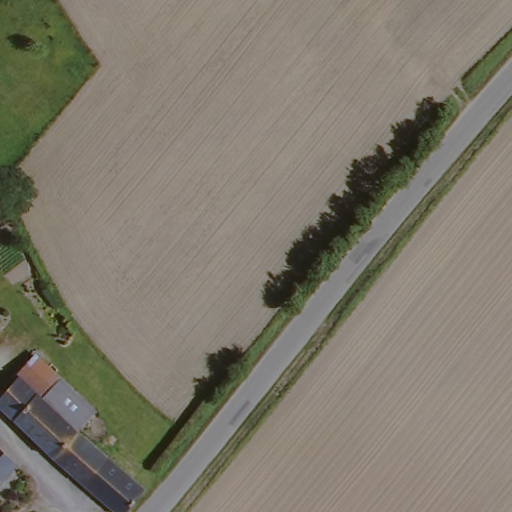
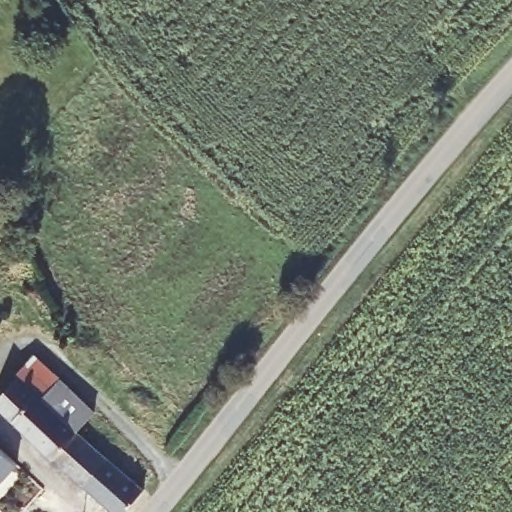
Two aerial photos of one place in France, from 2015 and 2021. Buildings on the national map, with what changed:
unchanged [(66,381),(99,409),(82,431),(111,458),(86,486),(0,406),(0,405),(22,379),(40,358),(66,381)]
unchanged [(0,488),(0,447),(21,467),(0,488)]
unchanged [(149,490),(131,512),(114,512),(86,486),(111,458),(149,490)]

